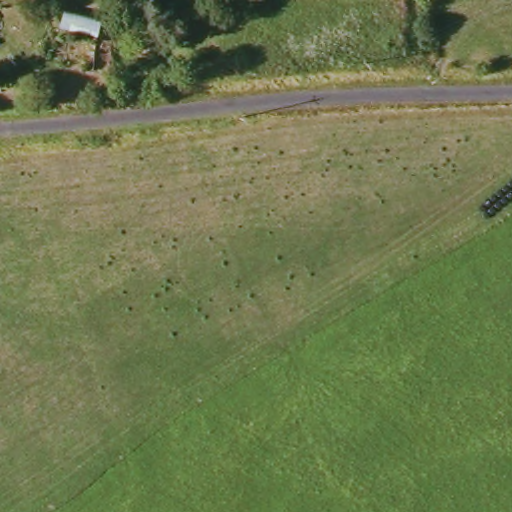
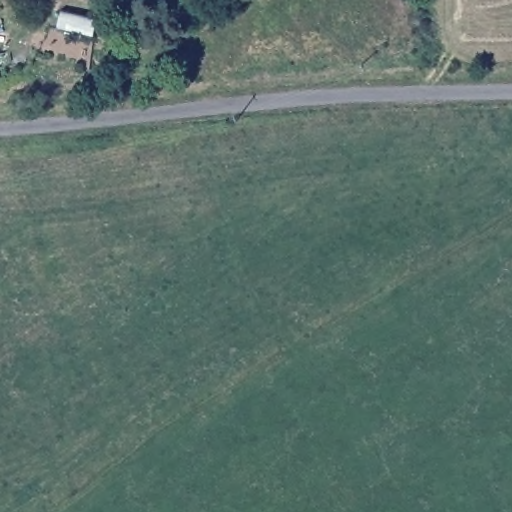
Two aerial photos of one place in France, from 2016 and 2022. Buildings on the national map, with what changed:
unchanged [(97,16),(93,35),(55,26),(59,8),(97,16)]

